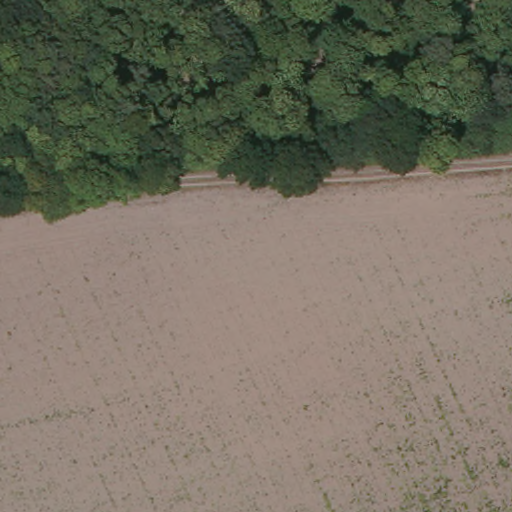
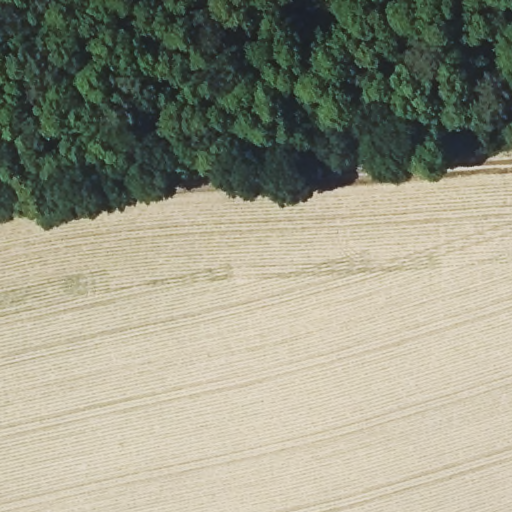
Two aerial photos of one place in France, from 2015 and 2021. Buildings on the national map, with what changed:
[]

